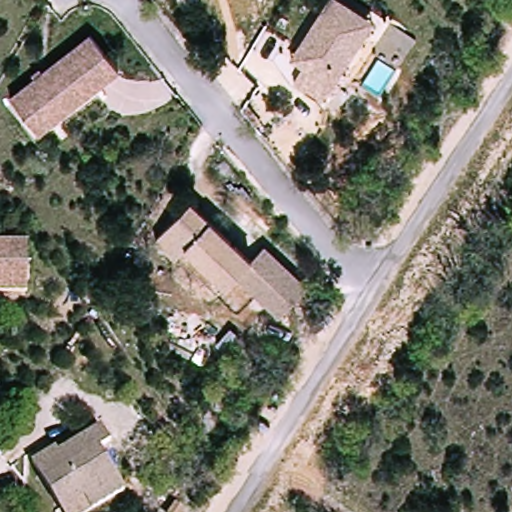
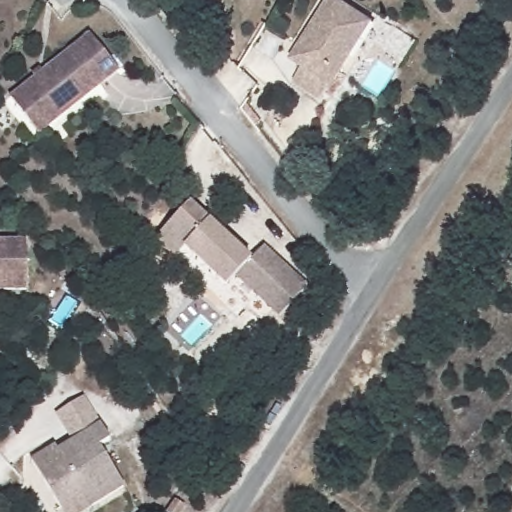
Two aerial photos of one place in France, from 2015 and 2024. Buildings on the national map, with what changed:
unchanged [(297,49),(329,0),(334,0),(361,18),(371,24),(352,54),(321,102),(292,84),(302,69),(290,61),(297,49)]
unchanged [(12,103),(92,40),(120,76),(72,114),(40,139),(30,127),(12,103)]
unchanged [(178,259),(159,240),(193,204),(253,263),(267,250),(308,291),(282,320),(240,278),(230,289),(188,249),(178,259)]
unchanged [(25,291),(0,291),(0,242),(25,242),(25,291)]
unchanged [(107,438),(97,444),(121,484),(87,505),(80,492),(57,506),(28,457),(52,443),(55,447),(71,437),(97,421),(107,438)]

